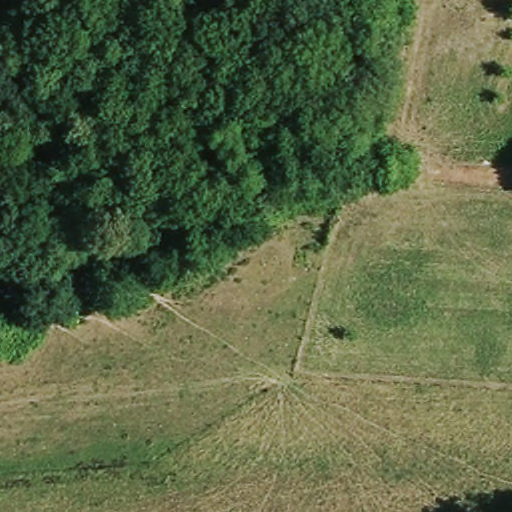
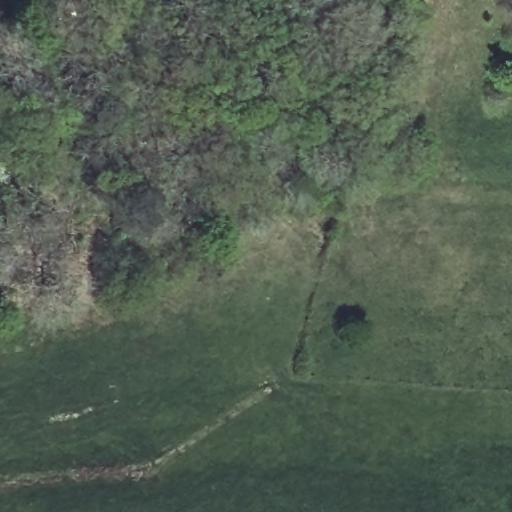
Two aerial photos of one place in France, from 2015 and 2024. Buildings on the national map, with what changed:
[]

